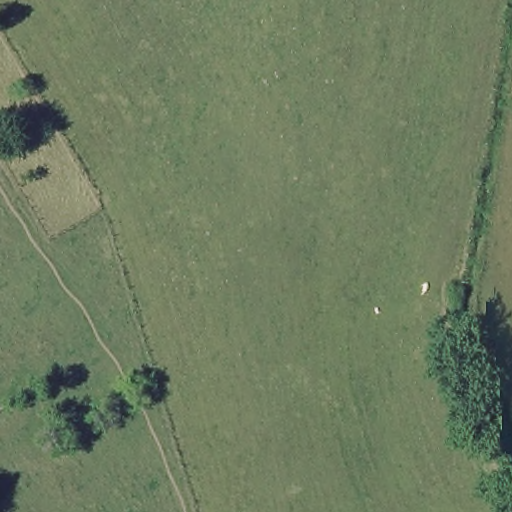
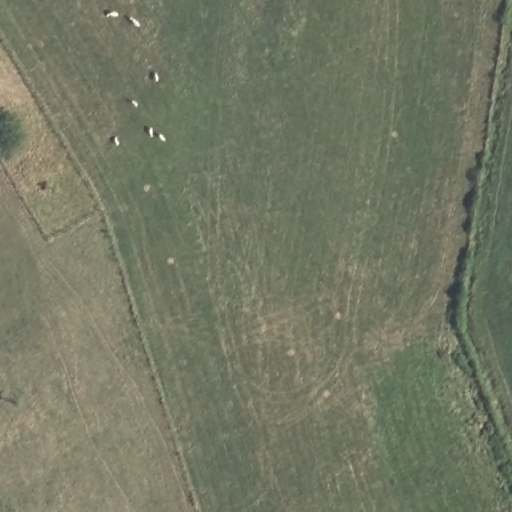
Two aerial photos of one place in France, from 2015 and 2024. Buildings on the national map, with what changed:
[]

